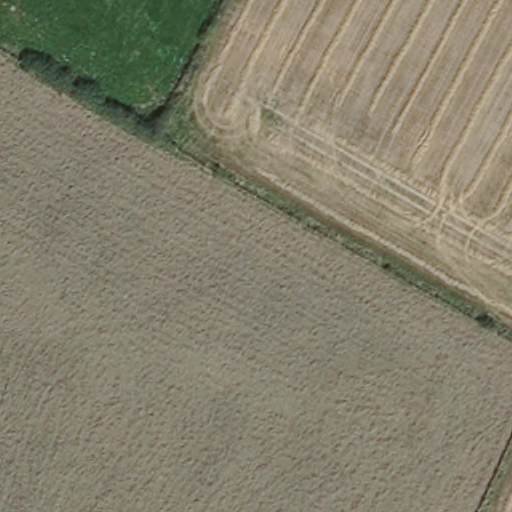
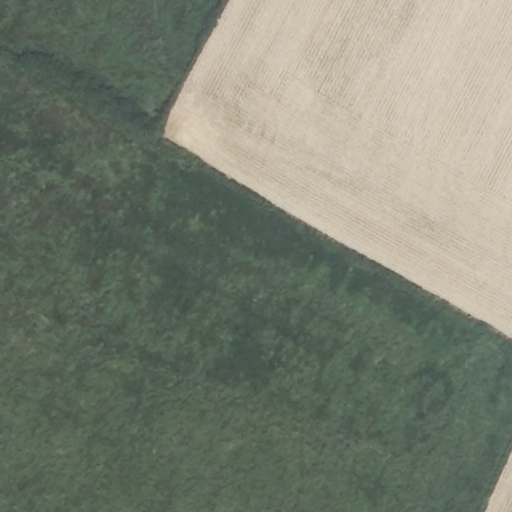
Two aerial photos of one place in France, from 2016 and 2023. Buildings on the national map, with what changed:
[]

